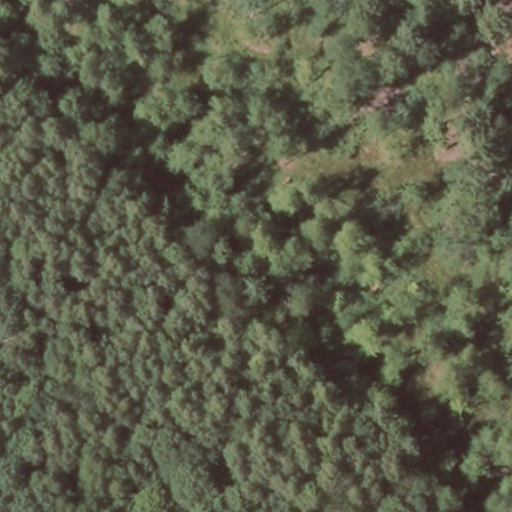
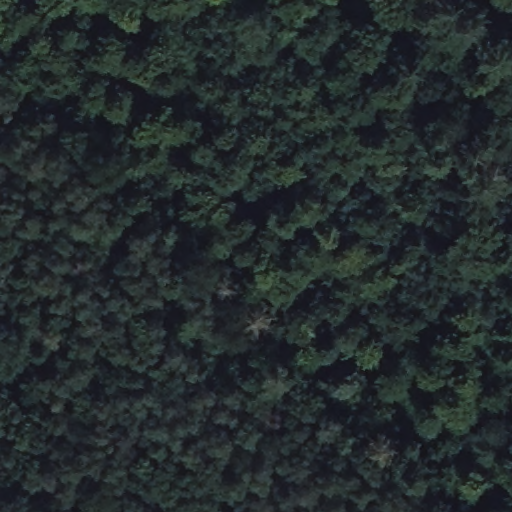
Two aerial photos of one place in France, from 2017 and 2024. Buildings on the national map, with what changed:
[]

